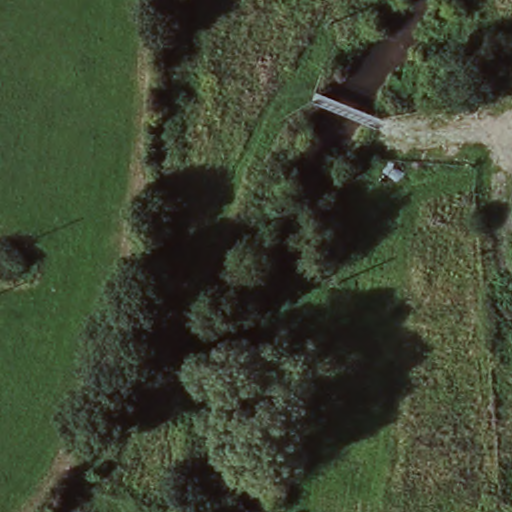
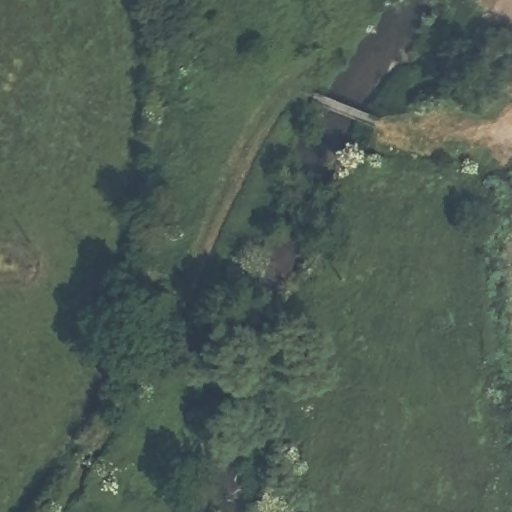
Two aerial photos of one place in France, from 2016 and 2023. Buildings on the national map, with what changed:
[]

